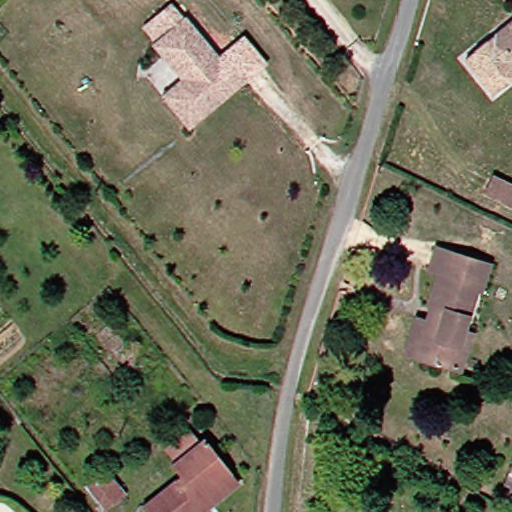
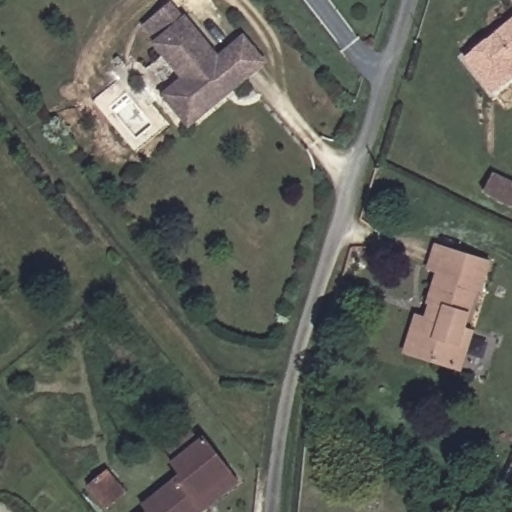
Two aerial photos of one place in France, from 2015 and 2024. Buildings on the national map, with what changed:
unchanged [(170,89),(185,76),(156,42),(175,26),(162,11),(174,1),(187,16),(189,15),(239,75),(242,79),(195,119),(190,123),(184,115),(165,93),(170,89)]
unchanged [(487,97),(460,64),(512,22),(512,78),(487,97)]
unchanged [(512,186),(512,208),(478,192),(487,174),(512,186)]
unchanged [(461,370),(455,368),(426,359),(404,352),(415,316),(425,319),(430,305),(427,304),(437,272),(427,269),(435,246),(470,257),(490,263),(482,290),(477,289),(465,329),(472,331),(461,370)]
unchanged [(175,479),(167,468),(170,465),(160,453),(185,433),(195,446),(199,443),(226,477),(234,486),(201,512),(139,512),(137,510),(175,479)]
unchanged [(512,467),(512,486),(505,483),(512,467)]
unchanged [(97,474),(116,498),(102,509),(83,485),(97,474)]

